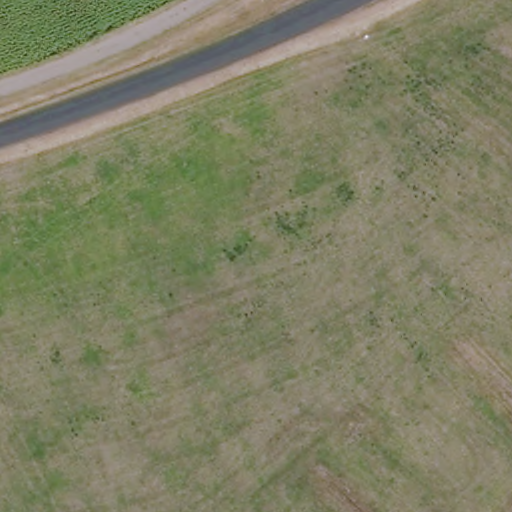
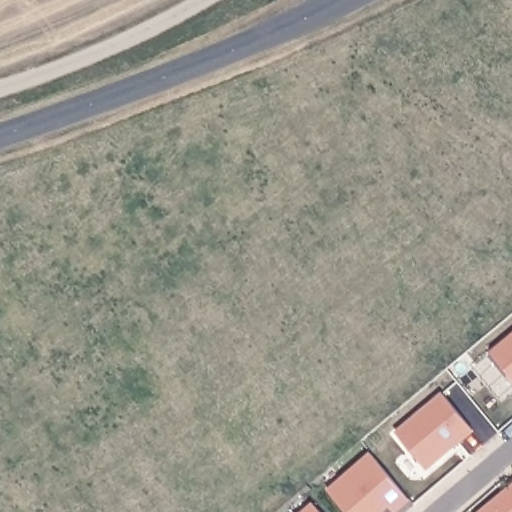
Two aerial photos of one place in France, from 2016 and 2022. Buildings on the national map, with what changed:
new [(512,378),(491,353),(512,335),(512,378)]
new [(443,393),(474,430),(433,464),(422,463),(396,432),(443,393)]
new [(395,512),(389,505),(382,512),(347,512),(329,490),(371,453),(409,500),(395,512)]
new [(512,489),(512,493),(510,491),(512,489)]
new [(502,498),(507,499),(512,495),(512,512),(485,512),(502,498)]
new [(313,503),(320,512),(303,512),(313,503)]

